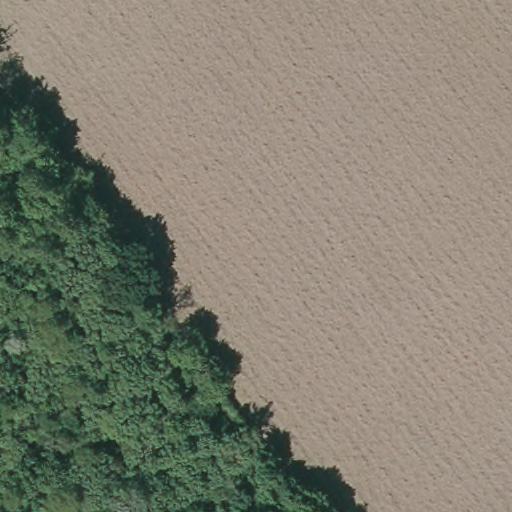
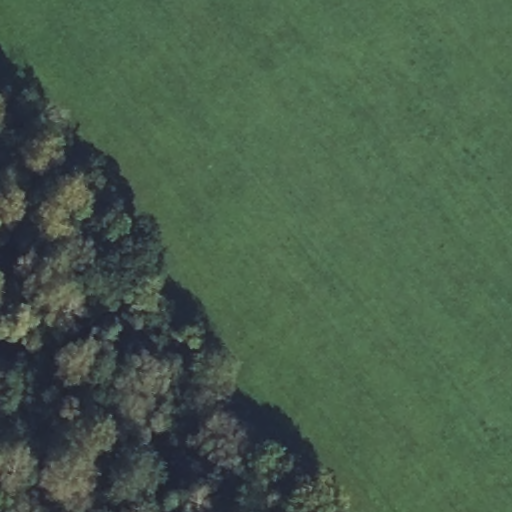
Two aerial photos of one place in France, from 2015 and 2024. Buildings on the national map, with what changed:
unchanged [(0,147),(0,145),(1,145),(0,147)]

